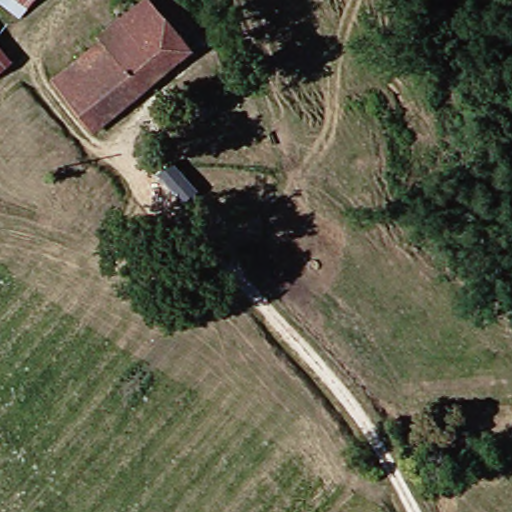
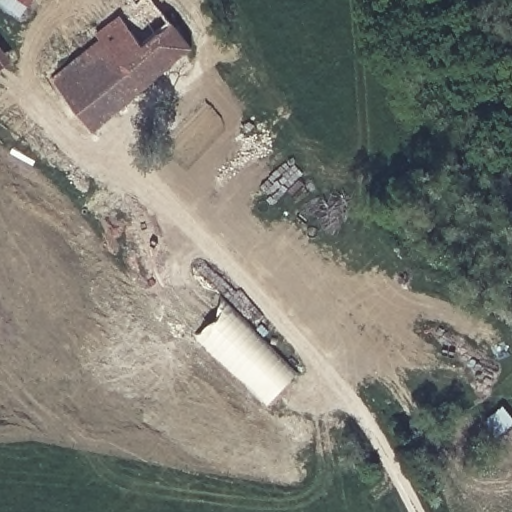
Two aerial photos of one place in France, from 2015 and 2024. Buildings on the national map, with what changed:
unchanged [(0,9),(0,0),(28,0),(14,19),(0,9)]
unchanged [(52,75),(94,45),(89,39),(143,3),(181,56),(98,115),(73,81),(61,89),(52,75)]
unchanged [(4,63),(0,66),(0,58),(4,63)]
unchanged [(61,89),(73,81),(98,115),(74,131),(51,100),(61,89)]
new [(297,376),(264,407),(195,337),(227,303),(297,376)]

